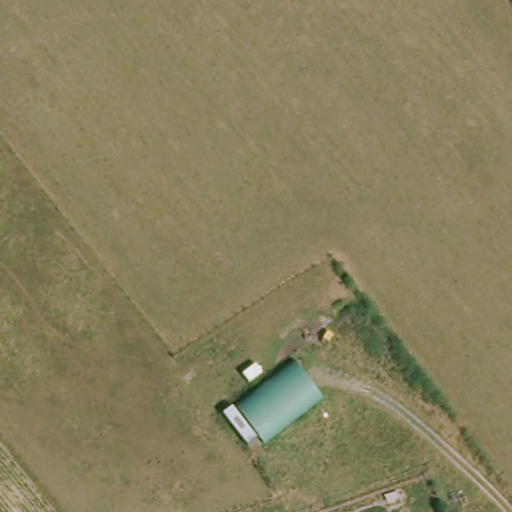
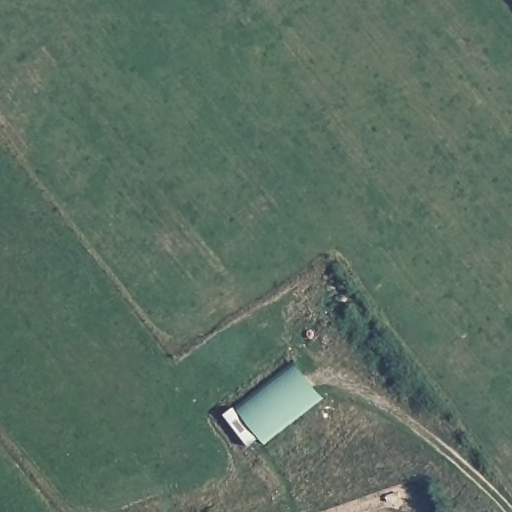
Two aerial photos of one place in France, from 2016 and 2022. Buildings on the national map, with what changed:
unchanged [(296,365),(322,397),(250,452),(225,419),(296,365)]

